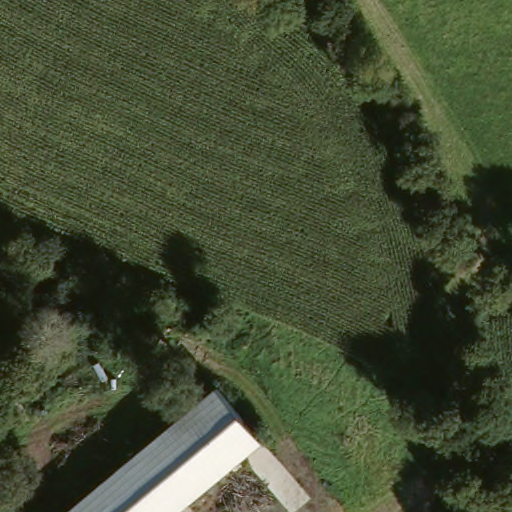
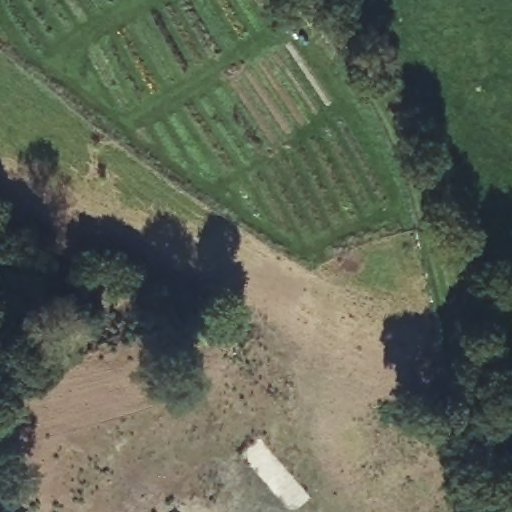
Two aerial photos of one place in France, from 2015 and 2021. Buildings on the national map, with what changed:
demolished [(220,395),(261,448),(242,463),(210,402),(220,395)]
demolished [(179,512),(70,512),(210,402),(242,463),(179,512)]

